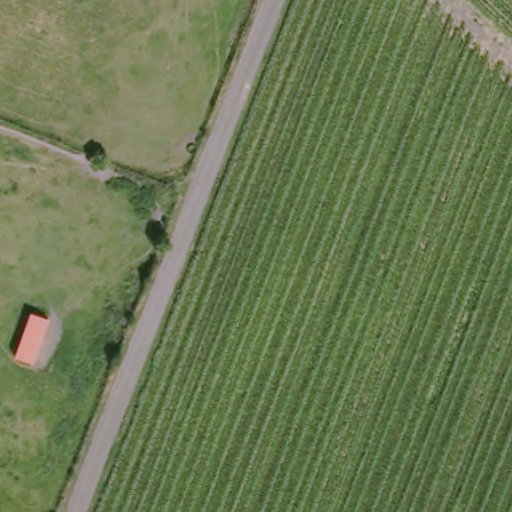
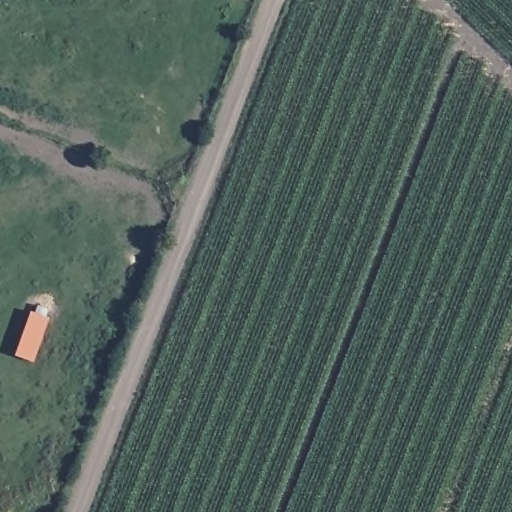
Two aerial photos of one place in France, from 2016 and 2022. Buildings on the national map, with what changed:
unchanged [(11,356),(27,306),(49,318),(33,363),(11,356)]

